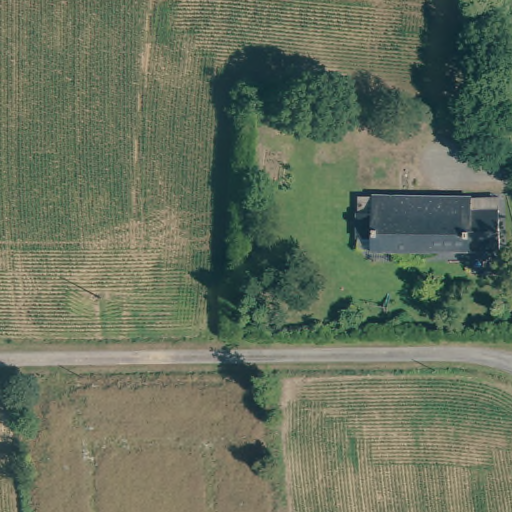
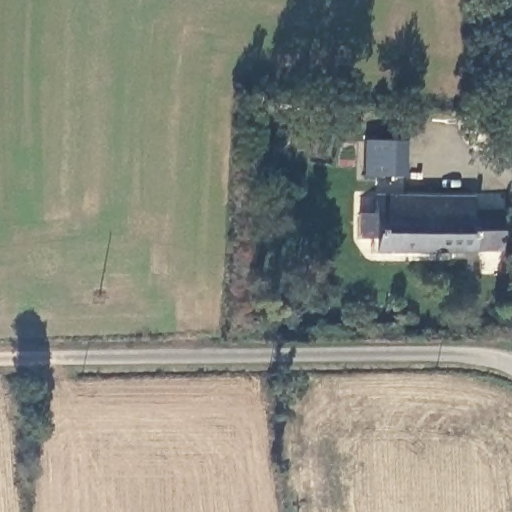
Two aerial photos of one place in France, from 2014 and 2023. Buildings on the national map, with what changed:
new [(404,179),(360,178),(361,139),(405,140),(404,179)]
unchanged [(437,250),(376,249),(376,236),(355,236),(356,215),(376,214),(377,197),(424,198),(441,199),(472,200),(472,211),(498,212),(498,250),(437,250)]

